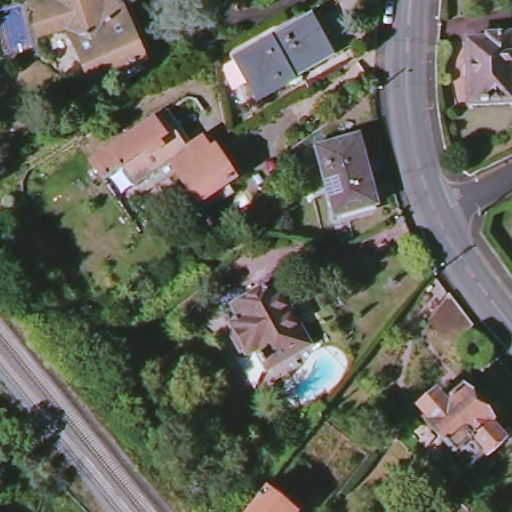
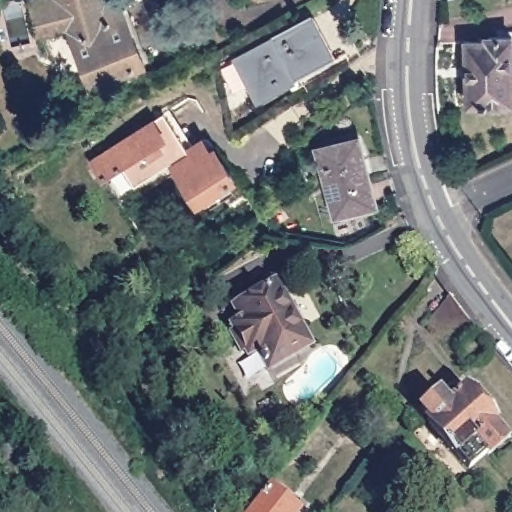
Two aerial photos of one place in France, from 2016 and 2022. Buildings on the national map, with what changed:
unchanged [(86,94),(62,36),(30,45),(20,11),(40,6),(39,0),(109,0),(137,73),(86,94)]
unchanged [(239,55),(310,16),(332,55),(292,78),(295,81),(263,99),(239,55)]
unchanged [(465,37),(484,37),(483,33),(500,32),(500,27),(512,26),(512,61),(509,61),(510,70),(512,70),(512,100),(467,101),(465,37)]
unchanged [(170,159),(133,184),(120,166),(104,177),(90,157),(162,108),(190,150),(203,141),(208,149),(213,146),(233,175),(197,200),(170,159)]
unchanged [(321,143),(354,135),(372,203),(340,212),(321,143)]
unchanged [(313,347),(270,371),(259,351),(250,356),(232,324),(242,319),(235,306),(280,282),(313,347)]
unchanged [(462,311),(473,325),(457,344),(430,322),(450,295),(462,311)]
unchanged [(425,423),(427,419),(418,409),(435,393),(437,395),(442,391),(450,400),(463,388),(493,422),(491,424),(505,440),(487,456),(486,454),(467,471),(425,423)]
unchanged [(265,487),(295,512),(247,512),(265,487)]

